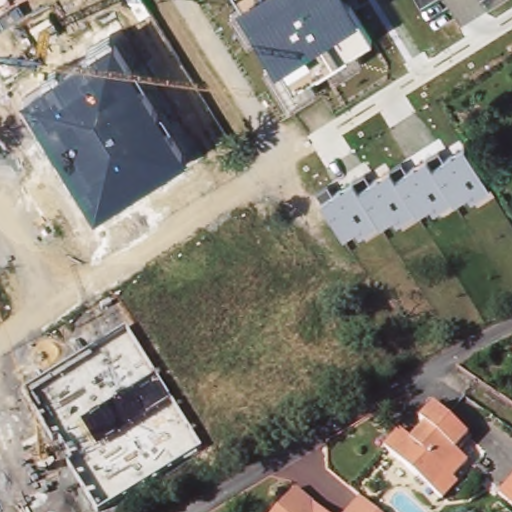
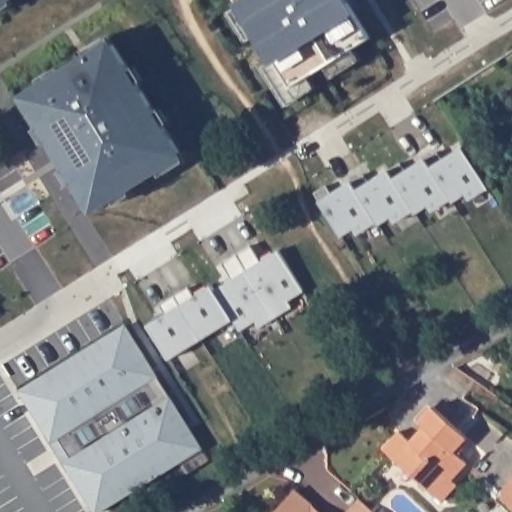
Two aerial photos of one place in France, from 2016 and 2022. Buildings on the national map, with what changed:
unchanged [(0,2),(0,0),(4,0),(0,2)]
unchanged [(291,88),(275,65),(240,3),(238,0),(349,0),(358,15),(372,37),(291,88)]
unchanged [(95,214),(21,97),(112,37),(187,154),(95,214)]
unchanged [(470,197),(469,194),(455,202),(453,199),(433,211),(431,206),(417,214),(415,211),(396,222),(392,216),(379,224),(377,221),(359,232),(356,228),(344,236),(319,198),(350,178),(356,187),(388,167),(393,176),(424,155),(430,165),(462,144),(489,184),(470,197)]
new [(251,244),(261,261),(278,250),(304,290),(288,300),(292,306),(276,316),(236,253),(251,244)]
new [(232,279),(222,262),(236,253),(276,316),(259,326),(255,320),(240,330),(233,319),(215,289),(232,279)]
new [(189,286),(195,296),(212,285),(215,289),(233,319),(201,339),(174,295),(189,286)]
new [(166,314),(160,304),(174,295),(201,339),(169,358),(148,325),(166,314)]
unchanged [(98,512),(24,390),(125,325),(202,448),(99,512),(98,512)]
unchanged [(442,503),(435,495),(385,450),(401,431),(413,442),(425,426),(420,422),(434,407),(469,438),(456,453),(469,463),(453,481),(457,485),(442,503)]
unchanged [(512,512),(511,512),(494,496),(512,477),(512,512)]
unchanged [(309,505),(316,512),(273,512),(292,490),(309,505)]
unchanged [(370,512),(345,512),(355,499),(370,512)]

